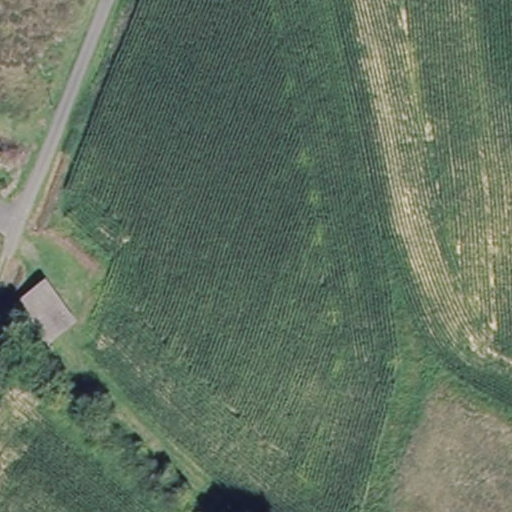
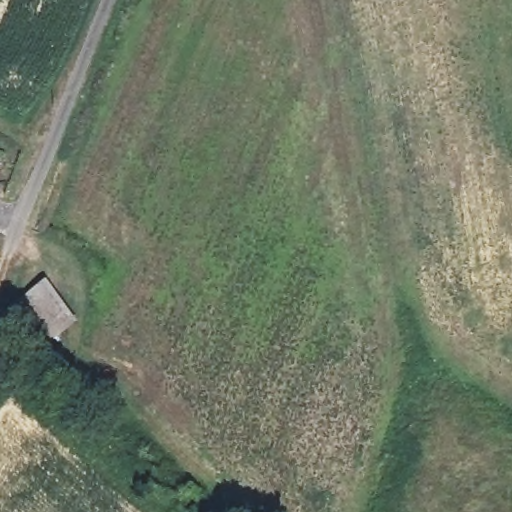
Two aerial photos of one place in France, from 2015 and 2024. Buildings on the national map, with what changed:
unchanged [(47,342),(10,302),(43,281),(73,320),(47,342)]

